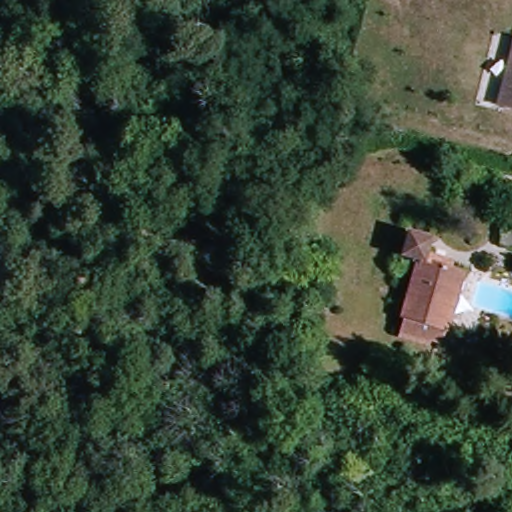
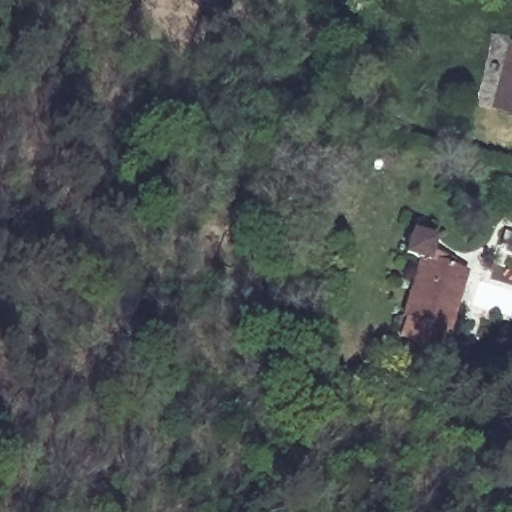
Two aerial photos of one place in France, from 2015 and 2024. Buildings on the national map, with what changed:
unchanged [(453,331),(412,320),(425,271),(410,266),(416,243),(440,249),(435,274),(466,283),(453,331)]

